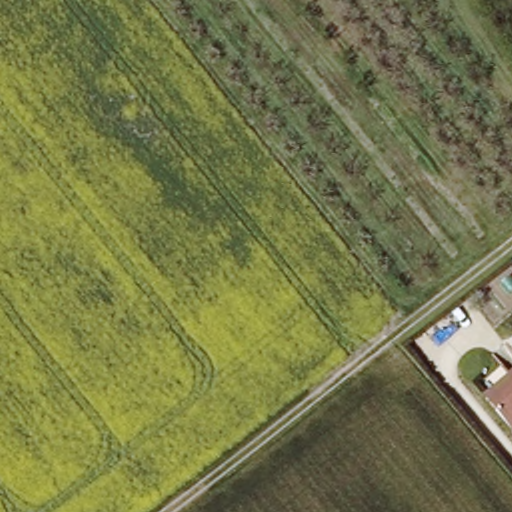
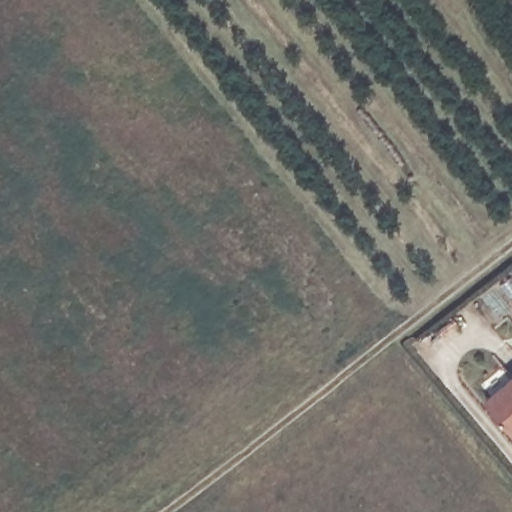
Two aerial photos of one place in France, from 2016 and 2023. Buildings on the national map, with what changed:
unchanged [(512,377),(512,432),(510,433),(484,400),(497,389),(512,377)]

